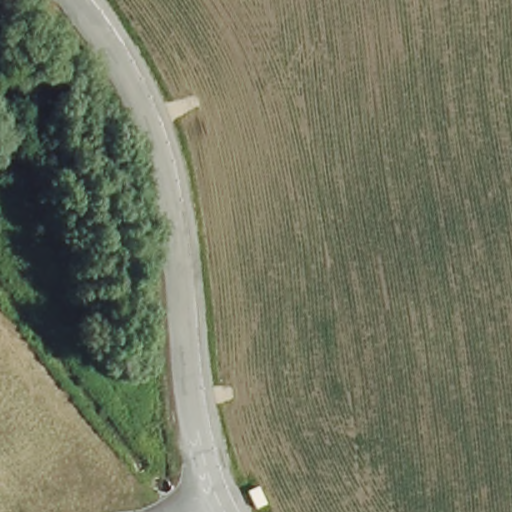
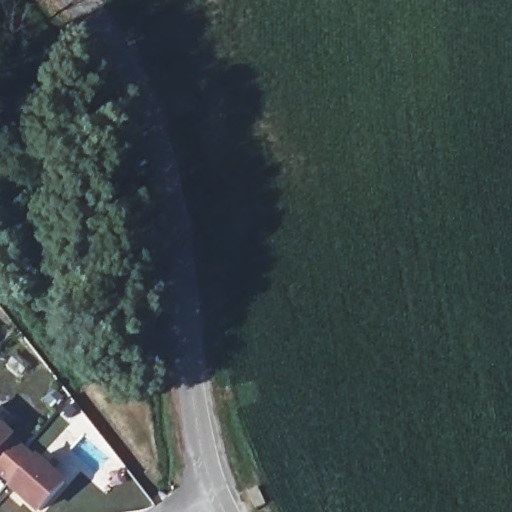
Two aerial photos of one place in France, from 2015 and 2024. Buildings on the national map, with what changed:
new [(17,436),(15,439),(27,450),(5,474),(0,469),(0,421),(17,436)]
new [(27,450),(40,461),(42,459),(69,483),(43,512),(17,488),(18,485),(5,474),(27,450)]

